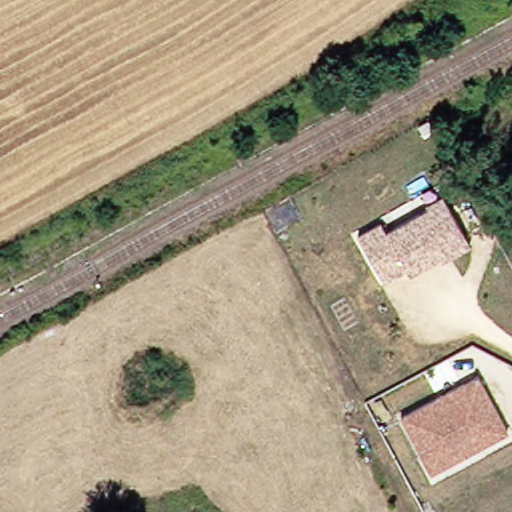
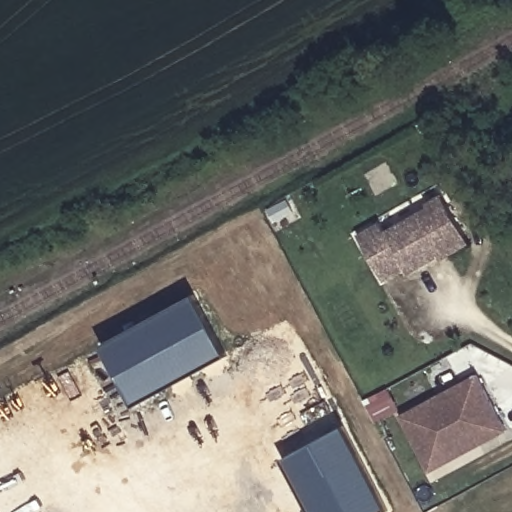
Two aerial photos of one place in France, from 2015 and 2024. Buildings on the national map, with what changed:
unchanged [(441,261),(439,257),(407,275),(404,270),(382,282),(356,236),(380,224),(385,233),(428,209),(426,205),(441,196),(446,205),(464,237),(469,245),(441,261)]
new [(135,403),(104,346),(194,297),(225,355),(135,403)]
unchanged [(420,460),(397,417),(474,377),(502,434),(476,447),(426,473),(420,460)]
new [(376,423),(364,401),(387,388),(400,410),(376,423)]
new [(345,427),(389,510),(384,512),(313,512),(284,458),(345,427)]

